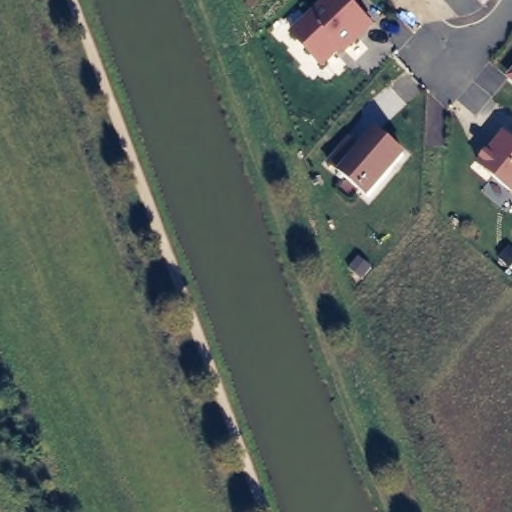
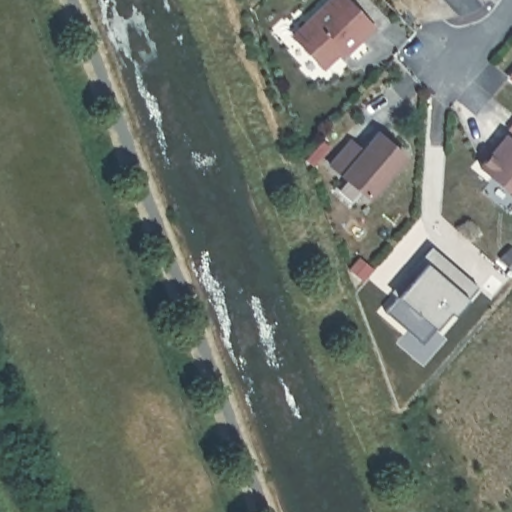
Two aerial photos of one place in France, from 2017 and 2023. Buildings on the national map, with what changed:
unchanged [(346,56),(342,53),(323,69),(288,33),(324,0),(349,0),(375,26),(346,56)]
unchanged [(512,70),(512,83),(506,77),(512,70)]
unchanged [(369,201),(325,165),(349,138),(360,147),(376,129),(407,155),(369,201)]
unchanged [(504,131),(512,138),(512,196),(475,165),(504,131)]
new [(413,279),(407,275),(431,247),(478,287),(454,315),(450,312),(422,344),(385,311),(413,279)]

